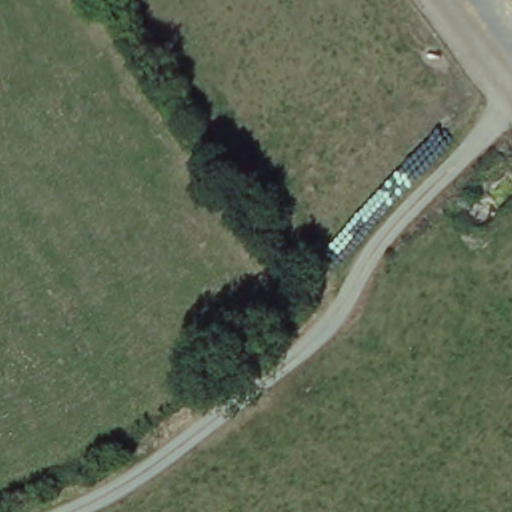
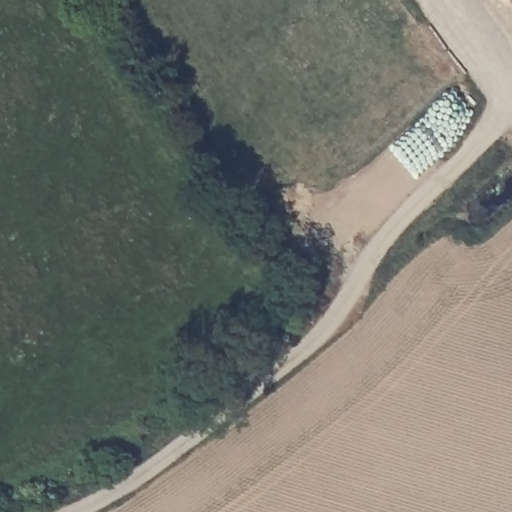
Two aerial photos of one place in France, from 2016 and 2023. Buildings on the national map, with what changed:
[]

